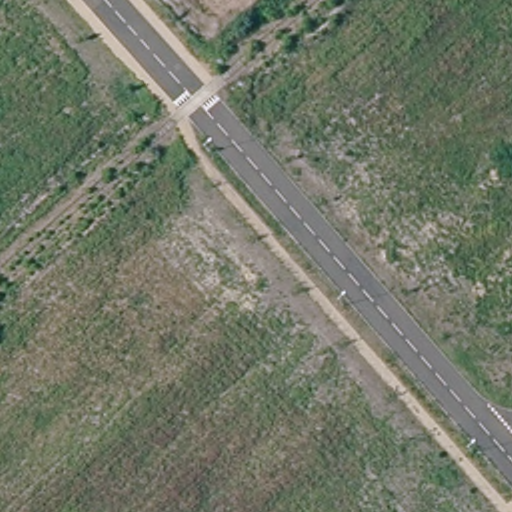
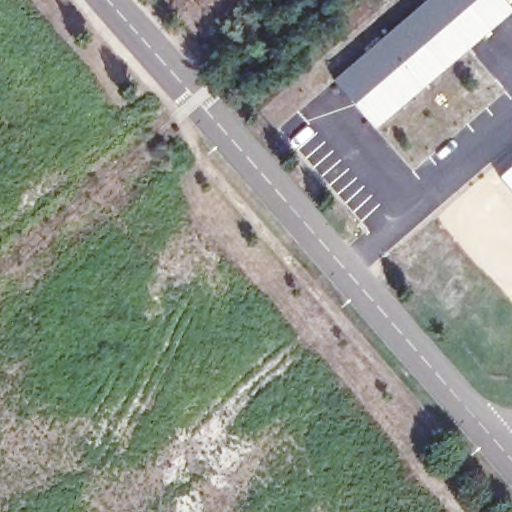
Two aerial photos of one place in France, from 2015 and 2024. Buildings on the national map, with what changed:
new [(507,0),(512,7),(512,12),(375,129),(332,79),(424,0),(507,0)]
new [(512,191),(498,175),(512,163),(512,191)]

